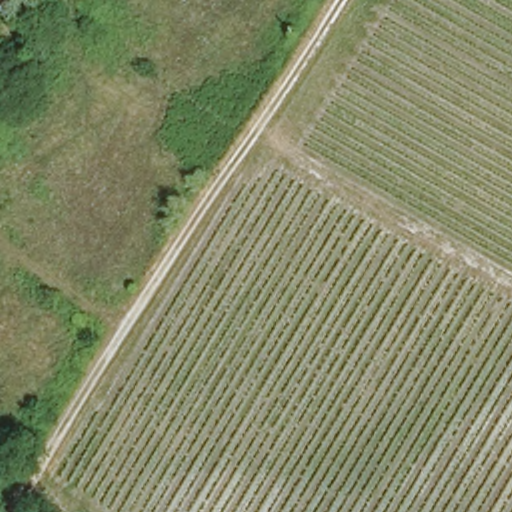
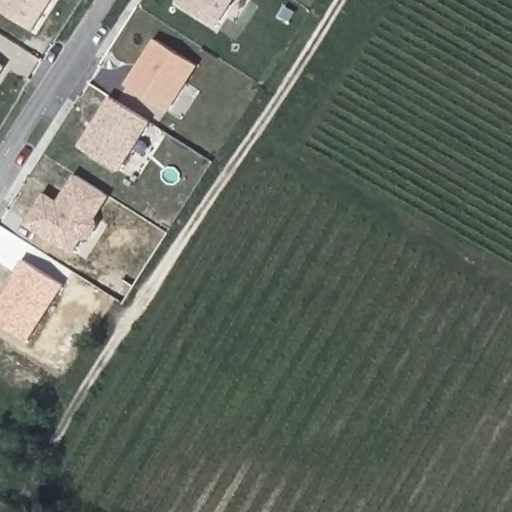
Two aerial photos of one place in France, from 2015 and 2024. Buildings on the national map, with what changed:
demolished [(4,20),(0,16),(0,0),(19,0),(22,2),(4,20)]
new [(49,0),(32,27),(0,6),(0,0),(49,0)]
new [(177,2),(179,0),(230,0),(213,26),(177,2)]
new [(155,44),(194,69),(164,115),(125,89),(155,44)]
new [(2,67),(0,70),(0,65),(2,67)]
new [(92,127),(110,100),(147,124),(116,174),(78,149),(88,132),(92,127)]
new [(56,205),(61,198),(75,177),(105,197),(91,219),(93,227),(85,237),(77,240),(69,253),(25,225),(43,197),(56,205)]
new [(25,261),(63,286),(27,341),(0,323),(0,300),(25,261)]

